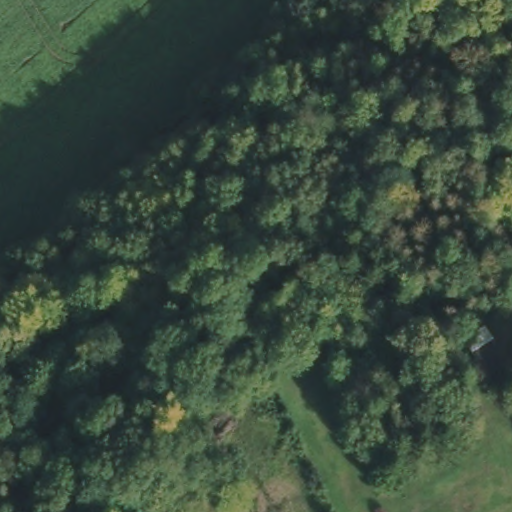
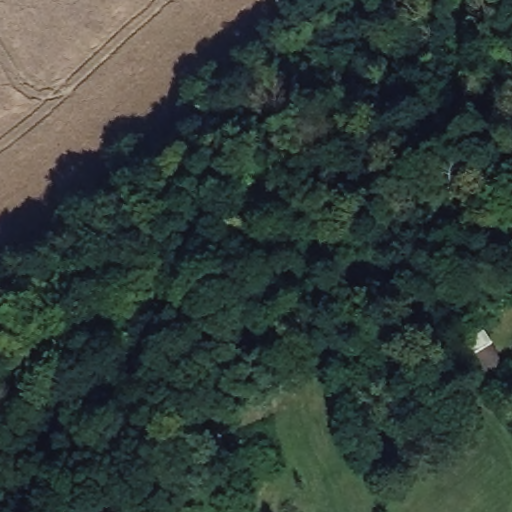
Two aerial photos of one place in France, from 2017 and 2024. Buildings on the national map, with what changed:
unchanged [(482,380),(461,349),(483,334),(505,368),(482,380)]
unchanged [(80,434),(37,452),(23,429),(68,410),(80,434)]

